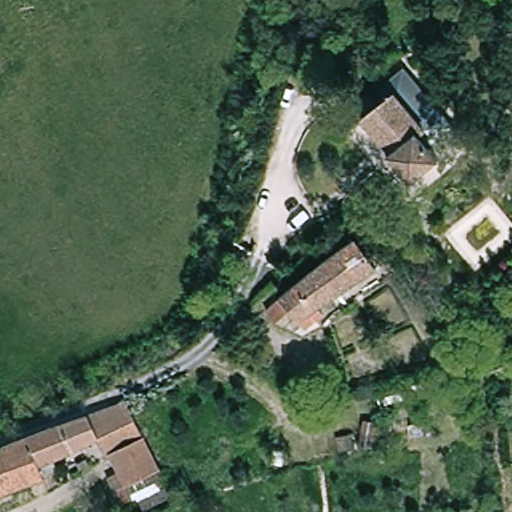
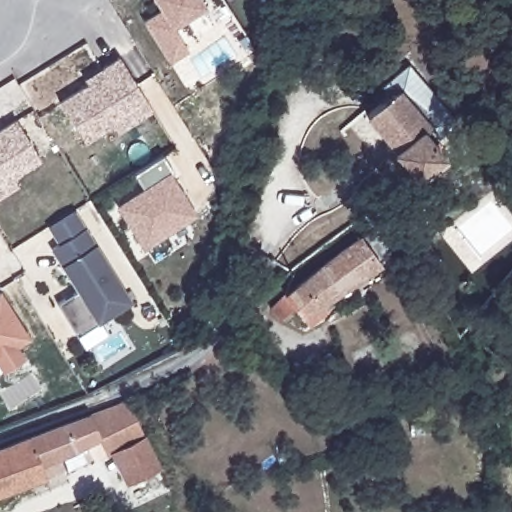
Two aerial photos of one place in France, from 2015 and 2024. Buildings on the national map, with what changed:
new [(172,28),(188,51),(168,64),(141,20),(158,8),(154,0),(202,0),(206,7),(172,28)]
new [(119,56),(153,113),(118,134),(113,126),(84,144),(59,100),(87,84),(84,78),(119,56)]
unchanged [(398,87),(429,124),(423,130),(440,153),(412,176),(391,150),(393,149),(366,114),(398,87)]
new [(42,160),(14,177),(19,185),(0,197),(0,127),(15,118),(42,160)]
new [(143,189),(133,173),(163,155),(173,173),(171,174),(198,217),(143,250),(115,206),(143,189)]
new [(74,209),(95,244),(131,303),(76,337),(56,303),(76,291),(50,249),(56,244),(48,227),(74,209)]
unchanged [(304,320),(298,312),(293,305),(279,318),(271,307),(284,294),(361,234),(381,261),(322,308),(305,320),(304,320)]
new [(31,340),(18,348),(25,361),(4,374),(0,367),(0,291),(1,290),(31,340)]
unchanged [(449,359),(447,354),(456,349),(459,354),(449,359)]
unchanged [(39,463),(44,475),(0,492),(0,448),(63,423),(128,400),(139,422),(98,439),(39,463)]
unchanged [(161,467),(128,483),(113,452),(105,455),(98,439),(139,422),(161,467)]

